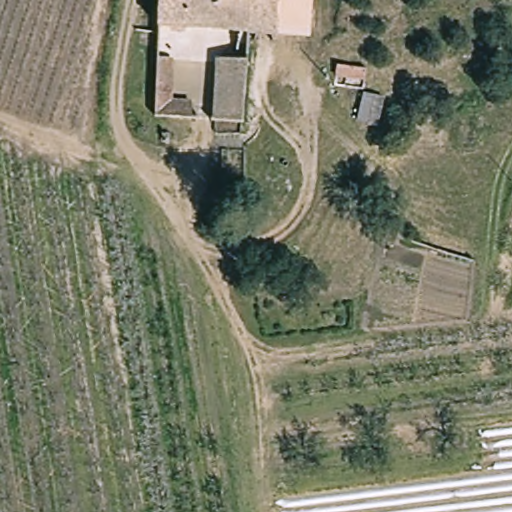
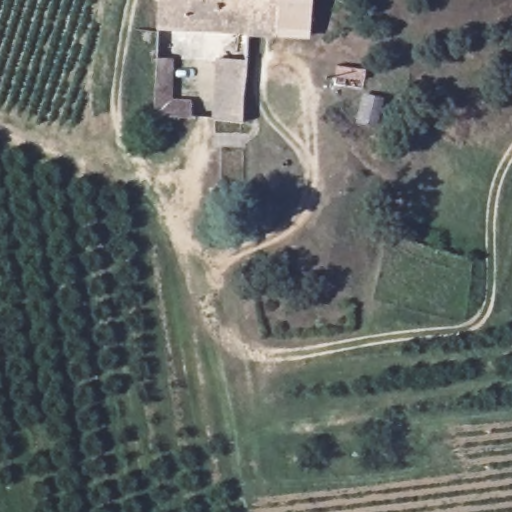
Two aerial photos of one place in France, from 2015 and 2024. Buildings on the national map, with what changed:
unchanged [(157,25),(157,0),(311,0),(308,37),(157,25)]
unchanged [(195,119),(173,118),(159,117),(162,49),(175,50),(174,104),(197,105),(195,119)]
unchanged [(218,58),(251,60),(245,125),(213,123),(218,58)]
unchanged [(357,80),(332,76),(335,64),(359,70),(357,80)]
unchanged [(378,121),(363,120),(367,99),(382,100),(378,121)]

